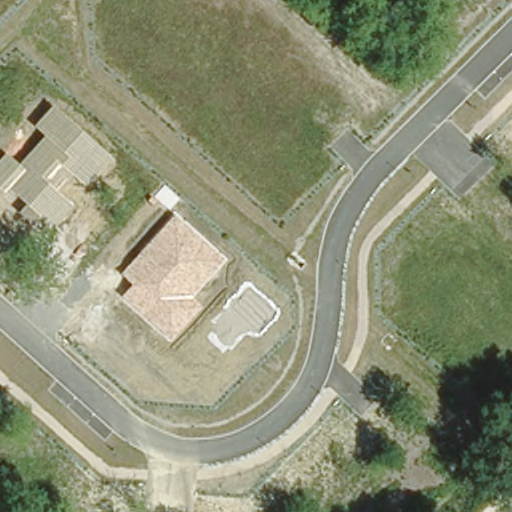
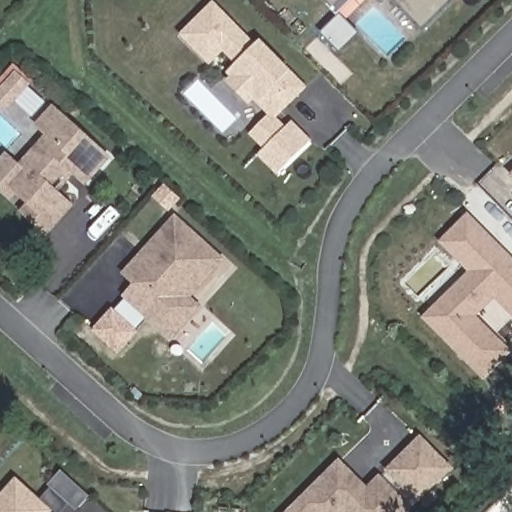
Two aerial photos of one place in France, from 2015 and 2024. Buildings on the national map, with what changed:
new [(336,15),(321,0),(353,0),(336,15)]
new [(421,34),(389,0),(453,0),(421,34)]
new [(276,117),(285,127),(290,121),(309,140),(275,173),(256,155),(262,150),(248,134),(267,115),(256,103),(253,100),(249,103),(226,80),(230,76),(226,72),(234,65),(222,53),(210,64),(179,34),(212,1),(255,44),(260,39),(289,69),(306,88),(276,117)]
new [(26,85),(12,101),(2,112),(0,110),(0,90),(14,75),(26,85)]
unchanged [(70,176),(58,191),(73,207),(50,231),(38,220),(33,225),(19,213),(26,204),(9,189),(3,195),(0,192),(0,162),(7,154),(18,164),(45,135),(35,126),(53,106),(113,158),(83,188),(70,176)]
new [(509,173),(512,171),(512,176),(509,173)]
unchanged [(194,298),(204,307),(171,340),(122,295),(132,285),(122,277),(175,216),(226,260),(194,298)]
new [(507,345),(485,367),(431,311),(471,272),(441,241),(464,219),(512,268),(512,313),(491,291),(465,317),(472,310),(493,331),(507,345)]
new [(419,435),(450,470),(415,503),(384,470),(419,435)]
new [(285,512),(338,458),(366,486),(380,474),(412,506),(406,512),(285,512)]
new [(39,498),(49,487),(46,485),(60,469),(88,496),(75,510),(67,505),(62,512),(53,512),(51,510),(50,512),(0,512),(0,496),(16,478),(39,498)]

